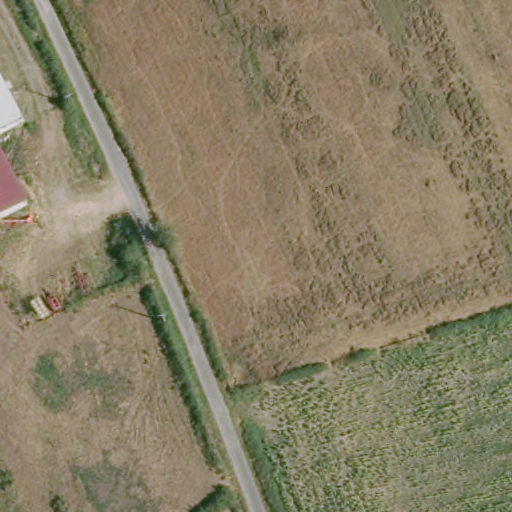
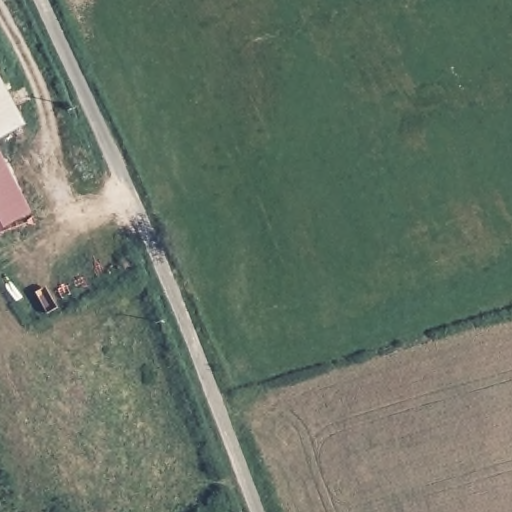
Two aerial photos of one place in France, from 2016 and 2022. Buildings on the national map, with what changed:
unchanged [(22,121),(0,131),(0,79),(22,121)]
unchanged [(25,205),(0,218),(0,156),(25,205)]

